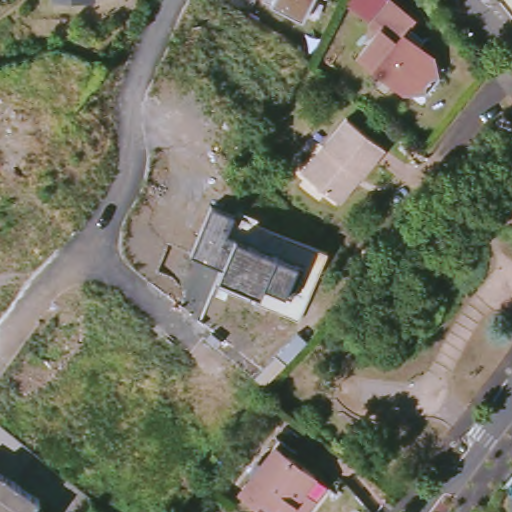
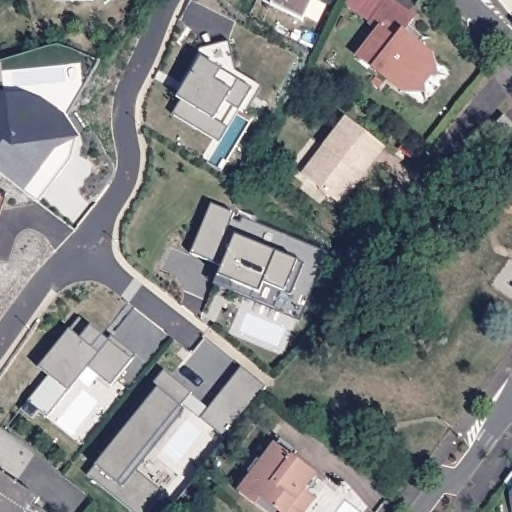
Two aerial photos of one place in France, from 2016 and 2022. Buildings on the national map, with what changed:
unchanged [(272,6),(275,0),(312,0),(302,21),(272,6)]
unchanged [(377,29),(366,20),(346,4),(349,0),(388,0),(413,18),(404,29),(415,38),(419,40),(414,45),(428,55),(438,76),(421,96),(401,90),(384,77),(356,55),(377,29)]
new [(244,119),(250,123),(221,170),(208,162),(218,142),(174,115),(183,101),(178,98),(200,60),(206,49),(228,44),(234,71),(261,87),(244,119)]
new [(0,175),(0,101),(17,99),(30,100),(50,109),(63,119),(74,136),(76,140),(74,146),(71,160),(64,169),(38,205),(21,191),(0,175)]
unchanged [(499,120),(507,112),(512,117),(512,130),(499,120)]
unchanged [(331,196),(302,171),(346,117),(382,145),(360,175),(339,202),(331,196)]
unchanged [(298,321),(216,285),(218,277),(225,262),(193,253),(213,205),(234,214),(240,211),(259,219),(258,224),(326,254),(298,321)]
new [(49,375),(39,367),(69,330),(78,317),(90,325),(108,340),(112,336),(135,355),(131,360),(111,386),(88,368),(69,392),(46,416),(28,401),(49,375)]
new [(266,387),(226,437),(185,407),(135,471),(163,492),(147,512),(135,512),(88,475),(96,466),(157,390),(153,386),(164,372),(191,392),(189,395),(208,410),(240,368),(266,387)]
unchanged [(318,474),(306,488),(319,498),(308,512),(264,512),(237,490),(275,440),(318,474)]
unchanged [(0,465),(38,499),(34,506),(41,512),(0,512),(0,465)]
unchanged [(512,474),(512,512),(511,512),(508,490),(511,487),(504,484),(512,474)]

